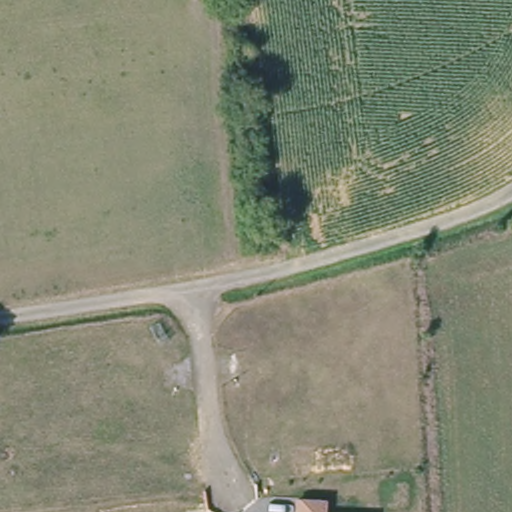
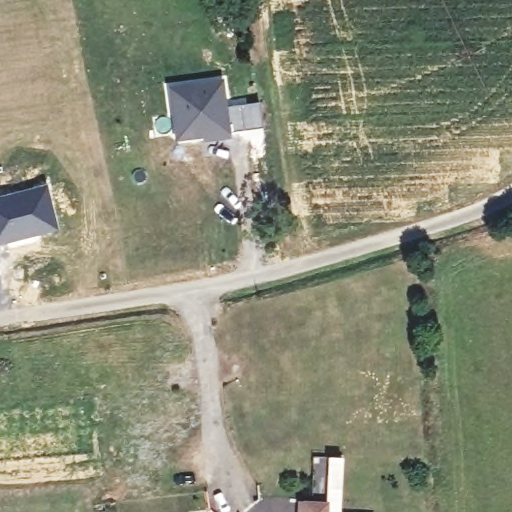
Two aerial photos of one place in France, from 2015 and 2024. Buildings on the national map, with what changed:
new [(222,79),(233,138),(201,142),(201,138),(174,142),(167,86),(222,79)]
new [(58,228),(0,244),(0,195),(46,183),(58,228)]
unchanged [(333,512),(300,512),(301,497),(334,498),(333,512)]

